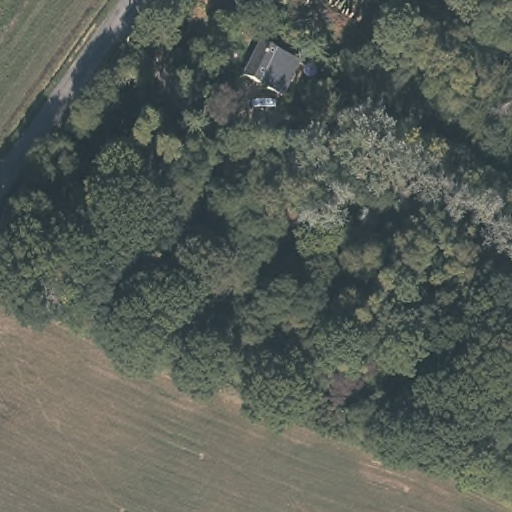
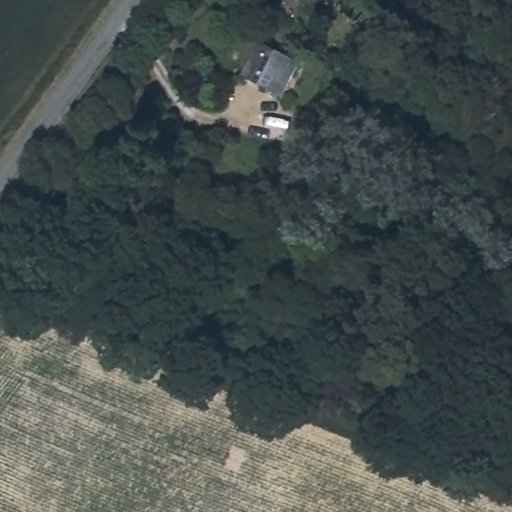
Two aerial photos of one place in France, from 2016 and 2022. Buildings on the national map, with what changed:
unchanged [(283,42),(264,77),(244,66),(263,33),(283,42)]

